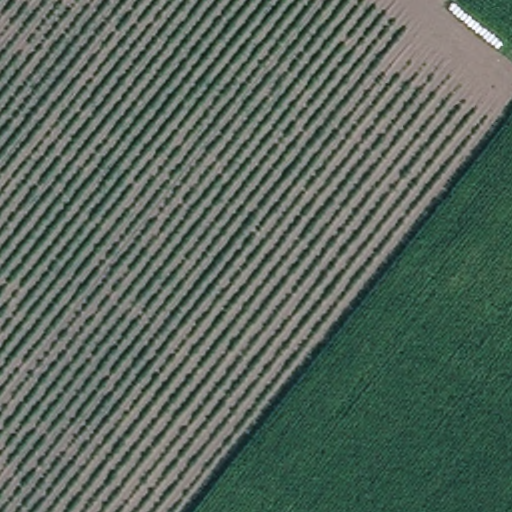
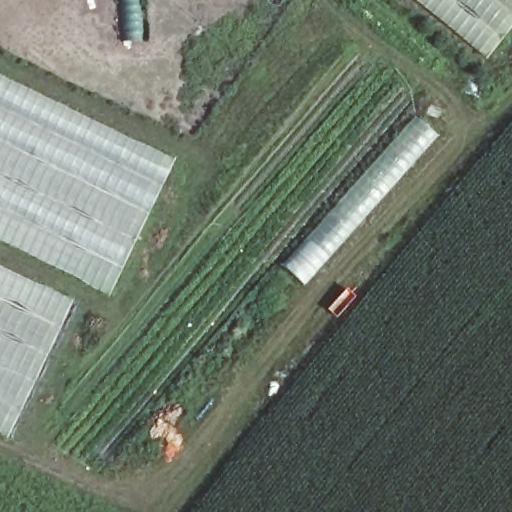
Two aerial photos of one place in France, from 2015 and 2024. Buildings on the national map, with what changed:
new [(512,27),(488,59),(412,0),(512,0),(512,27)]
new [(175,159),(110,295),(0,241),(0,73),(175,159)]
new [(417,117),(439,136),(305,286),(283,266),(417,117)]
new [(8,435),(0,431),(0,265),(73,301),(8,435)]

